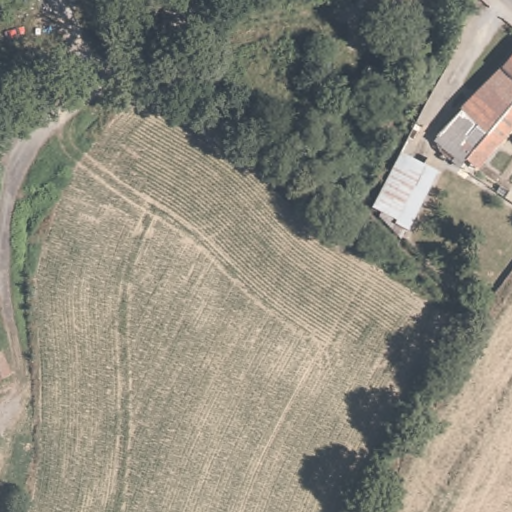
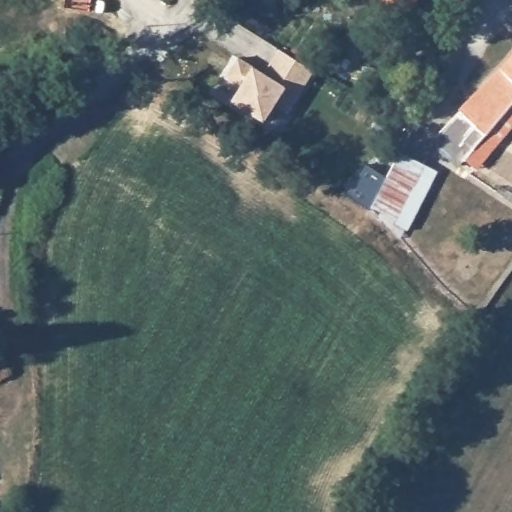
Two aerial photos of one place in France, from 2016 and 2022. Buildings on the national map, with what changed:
new [(288,113),(275,105),(264,122),(230,101),(239,86),(224,78),(237,57),(252,65),(263,72),(278,48),(314,70),(288,113)]
unchanged [(509,66),(512,62),(512,118),(474,167),(445,146),(484,97),(500,77),(509,66)]
unchanged [(390,85),(385,97),(362,93),(369,63),(422,71),(415,90),(390,85)]
unchanged [(371,205),(403,150),(439,167),(410,225),(371,205)]
unchanged [(10,373),(0,381),(0,357),(10,373)]

